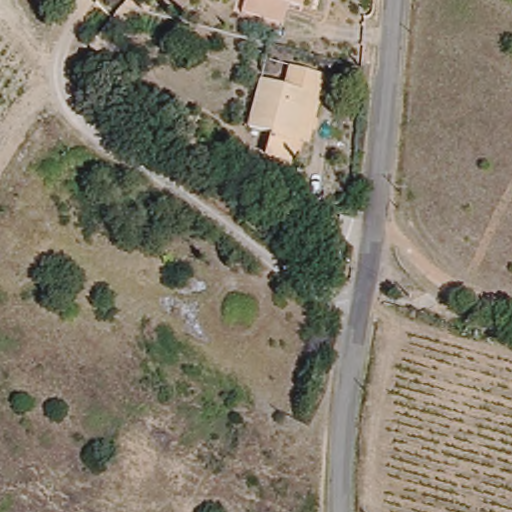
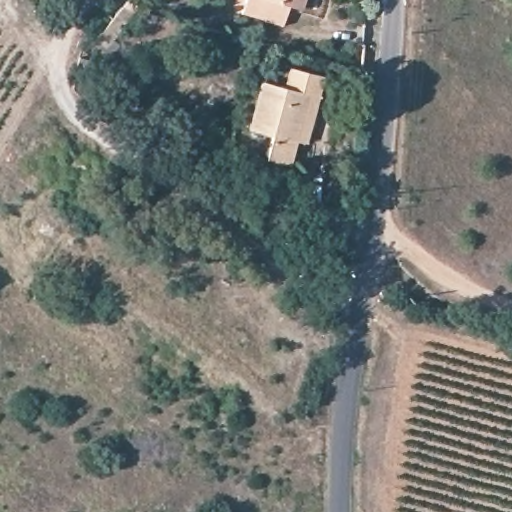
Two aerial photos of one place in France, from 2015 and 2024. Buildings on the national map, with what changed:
unchanged [(245,4),(246,0),(290,0),(285,17),(245,4)]
unchanged [(294,0),(302,0),(301,2),(294,0)]
unchanged [(98,40),(124,7),(128,1),(149,7),(148,13),(134,10),(108,48),(98,40)]
unchanged [(295,144),(290,165),(266,160),(272,138),(250,133),(261,84),(287,90),(291,72),(321,80),(316,100),(306,147),(295,144)]

